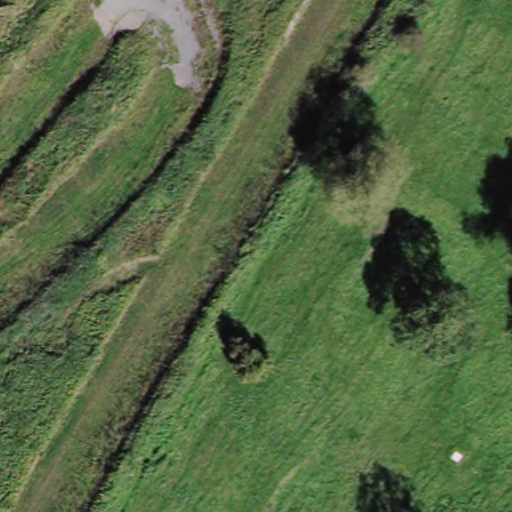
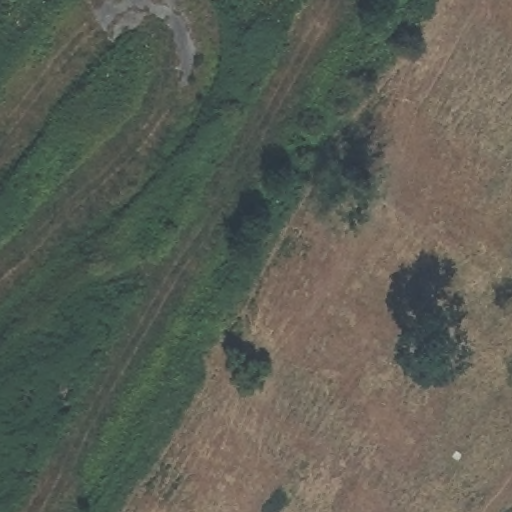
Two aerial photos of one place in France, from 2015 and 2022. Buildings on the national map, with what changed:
unchanged [(430,273),(439,277),(448,264),(466,277),(436,322),(410,305),(430,273)]

